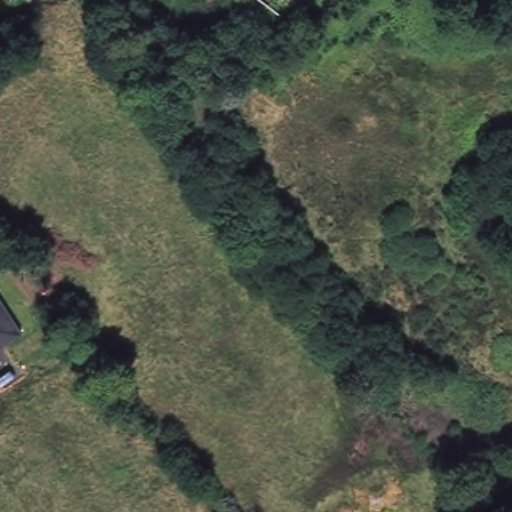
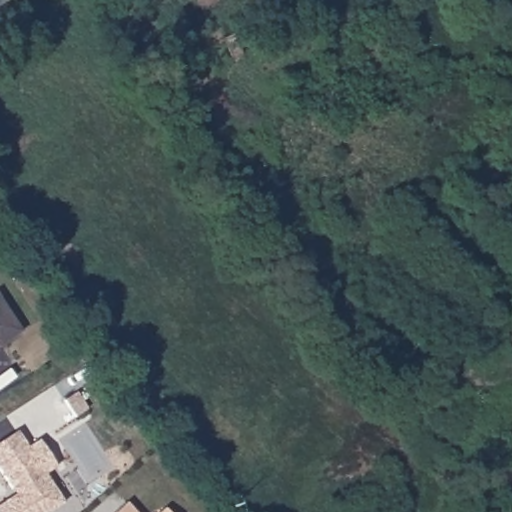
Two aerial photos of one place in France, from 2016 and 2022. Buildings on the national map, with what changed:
unchanged [(22,334),(0,349),(0,300),(22,334)]
new [(17,431),(27,448),(39,440),(56,467),(44,474),(63,503),(49,512),(0,512),(0,504),(15,494),(11,489),(0,471),(0,443),(17,431)]
new [(135,512),(115,512),(126,502),(135,512)]
new [(169,512),(159,512),(164,507),(169,512)]

